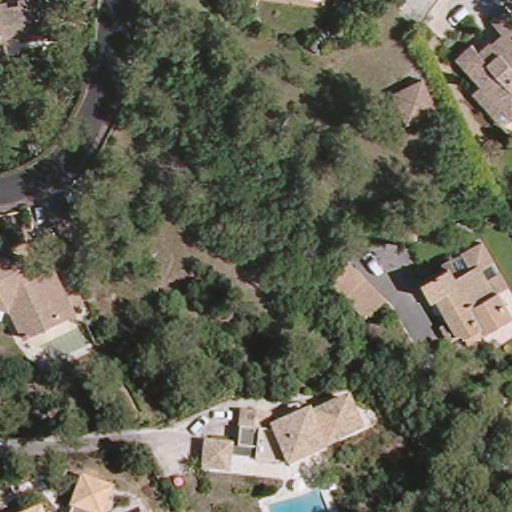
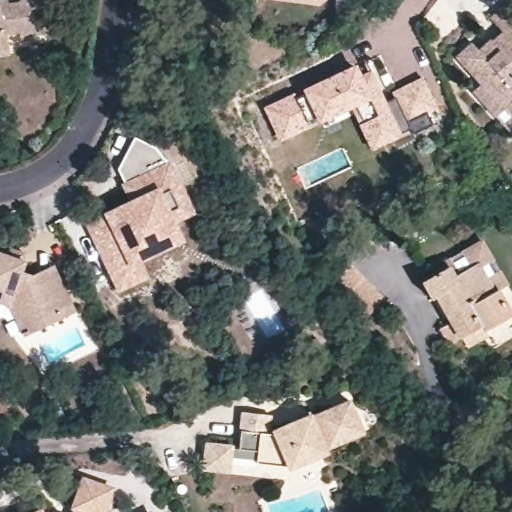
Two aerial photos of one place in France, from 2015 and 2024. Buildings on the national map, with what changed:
unchanged [(14,5),(24,3),(24,0),(47,0),(53,31),(27,36),(26,32),(11,34),(13,43),(14,54),(0,56),(0,0),(12,0),(14,5)]
unchanged [(512,12),(512,105),(507,110),(501,103),(491,111),(469,86),(478,78),(457,56),(472,41),(479,49),(490,38),(501,29),(491,17),(505,5),(512,12)]
new [(303,90),(357,65),(363,75),(376,68),(387,90),(382,91),(387,102),(397,99),(406,118),(424,109),(432,125),(414,131),(372,150),(353,112),(282,144),(266,109),(303,90)]
unchanged [(420,75),(434,104),(406,118),(392,88),(420,75)]
new [(127,199),(119,184),(122,182),(115,167),(130,135),(153,147),(164,161),(167,160),(193,212),(173,222),(182,240),(139,261),(146,277),(115,291),(81,221),(127,199)]
unchanged [(457,259),(493,240),(500,255),(488,262),(504,291),(508,290),(512,298),(512,320),(495,330),(498,336),(477,347),(471,338),(465,341),(457,326),(463,322),(448,296),(441,298),(432,280),(460,265),(457,259)]
unchanged [(12,300),(0,296),(0,248),(12,252),(15,244),(28,249),(25,257),(28,258),(25,267),(35,271),(56,261),(61,272),(78,308),(41,325),(27,332),(19,316),(12,300)]
unchanged [(384,301),(367,326),(327,290),(347,265),(384,301)]
unchanged [(275,415),(274,433),(280,433),(279,429),(297,421),(299,424),(355,401),(367,432),(334,445),(333,443),(328,445),(330,453),(295,468),(293,464),(287,465),(261,462),(263,451),(245,450),(249,413),(275,415)]
unchanged [(237,445),(234,470),(212,468),(214,444),(237,445)]

